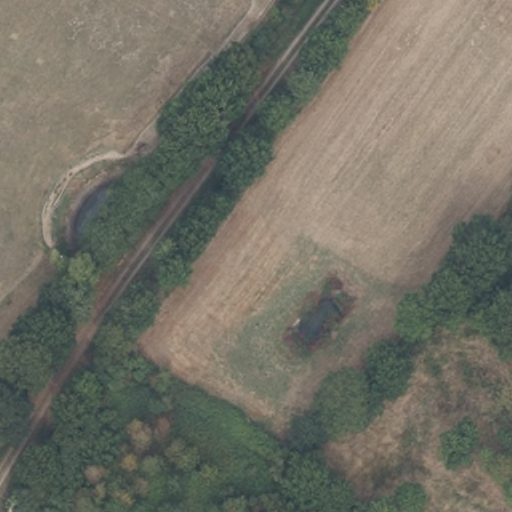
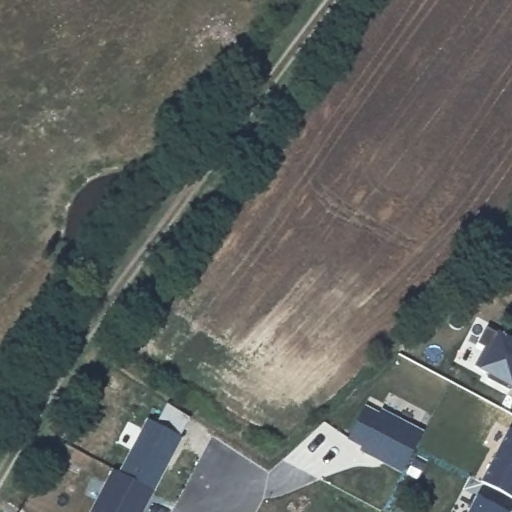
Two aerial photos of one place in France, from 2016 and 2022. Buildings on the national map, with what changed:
new [(510,385),(508,389),(486,378),(488,375),(477,369),(478,367),(474,365),(484,346),(477,343),(486,326),(497,332),(497,330),(512,337),(512,387),(510,385)]
new [(142,512),(89,512),(111,467),(119,471),(146,418),(156,422),(167,402),(191,415),(179,435),(182,437),(154,491),(142,512)]
new [(424,430),(401,472),(359,450),(361,445),(347,438),(364,404),(379,411),(381,408),(424,430)]
new [(508,426),(512,429),(512,497),(480,480),(508,426)]
new [(506,512),(467,512),(476,496),(506,512)]

